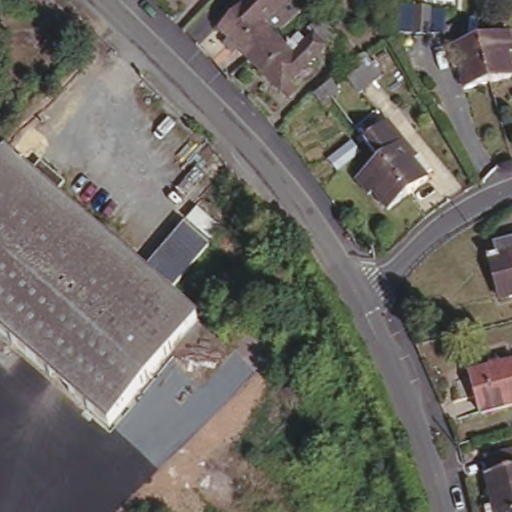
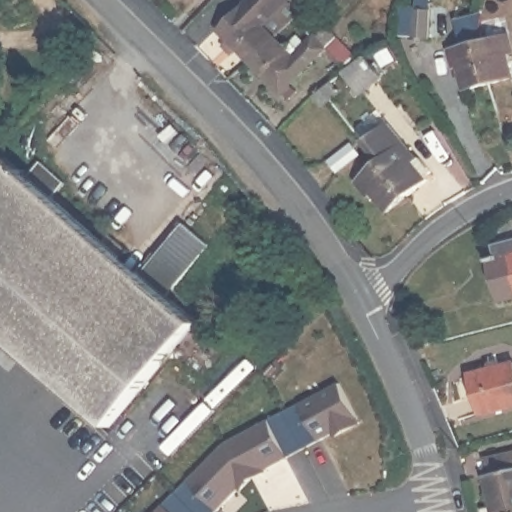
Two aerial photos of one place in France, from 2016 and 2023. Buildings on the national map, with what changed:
unchanged [(214,26),(241,0),(268,0),(254,14),(273,34),(247,60),(214,26)]
unchanged [(313,34),(325,23),(338,37),(327,49),(278,93),(247,60),(273,34),(292,53),(313,34)]
unchanged [(486,81),(474,39),(505,31),(510,50),(505,51),(512,75),(486,81)]
unchanged [(460,88),(454,65),(447,66),(442,48),(474,39),(486,81),(460,88)]
unchanged [(366,56),(381,77),(358,93),(343,72),(366,56)]
unchanged [(313,95),(322,89),(333,81),(347,99),(337,107),(328,114),(313,95)]
unchanged [(384,120),(412,154),(407,158),(408,160),(413,156),(427,172),(422,176),(422,177),(401,194),(375,161),(358,140),(384,120)]
unchanged [(35,158),(61,181),(48,196),(96,241),(104,232),(126,252),(119,260),(135,274),(160,294),(192,322),(105,426),(0,335),(0,159),(2,157),(21,173),(35,158)]
unchanged [(382,210),(367,192),(363,195),(352,180),(375,161),(401,194),(382,210)]
unchanged [(185,217),(210,239),(160,294),(135,274),(185,217)]
unchanged [(500,290),(489,255),(497,252),(494,241),(512,236),(512,286),(500,290)]
unchanged [(471,372),(490,367),(487,353),(496,350),(499,365),(512,360),(512,404),(482,412),(471,372)]
new [(337,439),(336,436),(267,468),(267,470),(252,477),(241,488),(240,488),(215,512),(158,512),(177,493),(227,443),(321,399),(345,387),(363,427),(337,439)]
unchanged [(490,477),(486,461),(512,454),(512,512),(491,512),(483,479),(490,477)]

